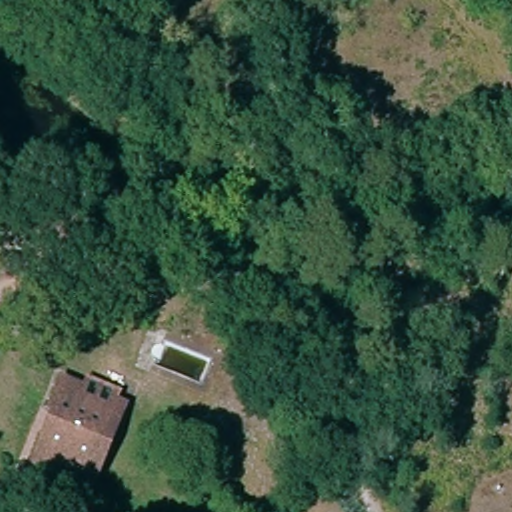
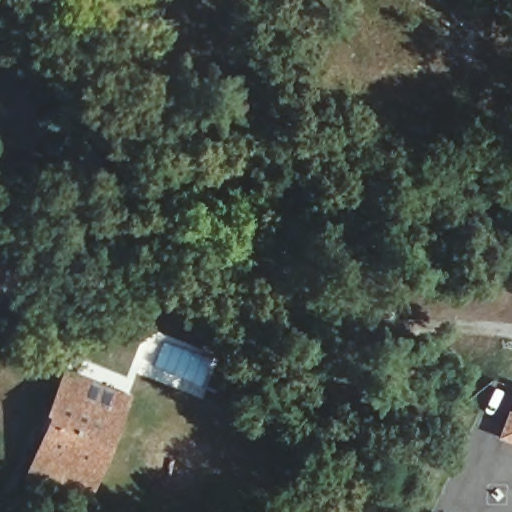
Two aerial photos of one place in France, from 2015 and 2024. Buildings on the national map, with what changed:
unchanged [(100,494),(91,491),(42,476),(51,446),(58,425),(53,424),(63,394),(85,400),(88,390),(119,399),(116,409),(126,412),(100,494)]
new [(499,437),(512,403),(512,441),(499,437)]

